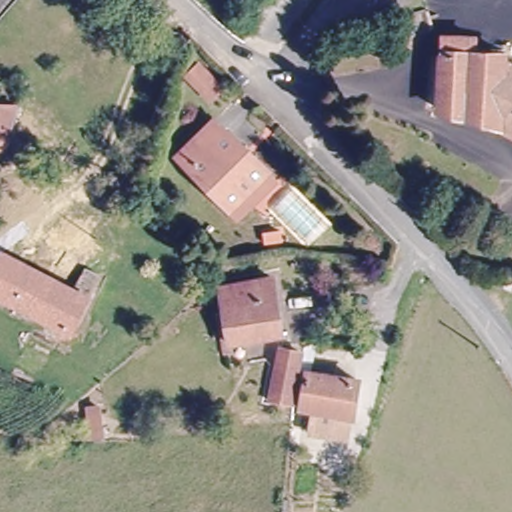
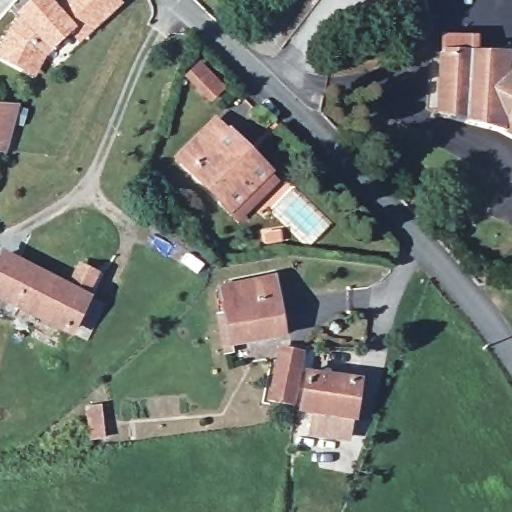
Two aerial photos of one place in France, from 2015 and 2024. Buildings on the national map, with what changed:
new [(67,31),(50,49),(33,77),(0,58),(0,46),(8,29),(14,15),(30,0),(49,0),(56,7),(63,0),(117,0),(121,4),(80,42),(67,31)]
unchanged [(445,107),(448,33),(481,34),(481,45),(512,46),(512,126),(505,122),(445,107)]
unchanged [(194,61),(217,84),(205,95),(183,72),(194,61)]
unchanged [(0,150),(0,107),(18,108),(6,151),(0,150)]
unchanged [(233,217),(225,209),(174,157),(210,120),(223,134),(225,132),(263,172),(272,180),(233,217)]
unchanged [(86,269),(98,275),(88,297),(86,296),(68,332),(0,296),(0,263),(4,256),(43,275),(75,290),(86,269)]
unchanged [(283,336),(223,346),(217,306),(224,305),(221,287),(275,279),(283,336)]
unchanged [(269,407),(280,354),(303,358),(299,379),(292,411),(269,407)]
unchanged [(332,442),(311,438),(314,417),(301,415),(301,412),(292,411),(299,379),(307,381),(307,378),(322,380),(358,386),(353,422),(350,422),(347,444),(332,442)]
unchanged [(88,410),(100,408),(103,437),(91,439),(88,410)]

